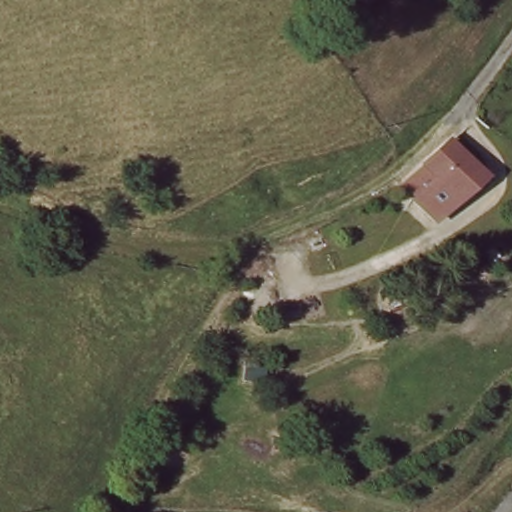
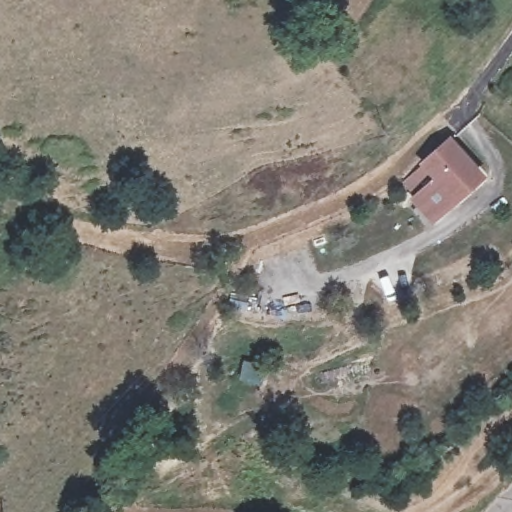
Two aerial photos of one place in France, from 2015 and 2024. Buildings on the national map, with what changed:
unchanged [(441,216),(419,202),(436,184),(423,168),(455,141),(489,178),(441,216)]

